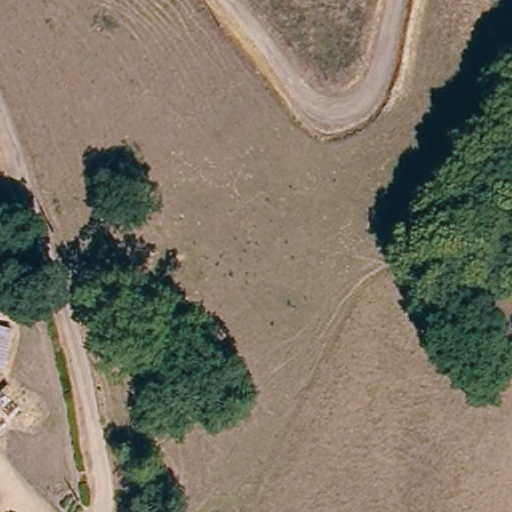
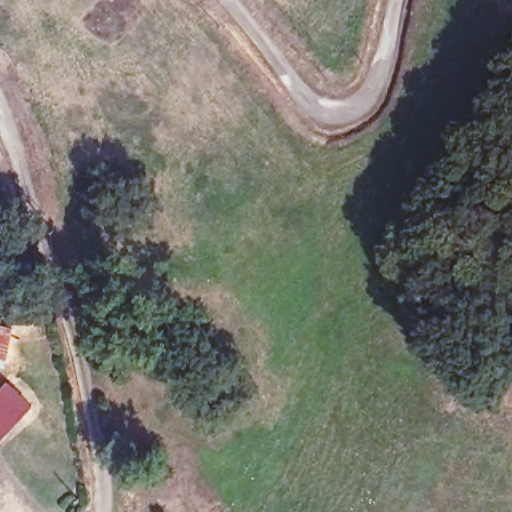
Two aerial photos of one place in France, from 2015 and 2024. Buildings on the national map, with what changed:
new [(15,328),(5,367),(0,366),(0,324),(15,328)]
new [(33,404),(0,441),(0,387),(6,380),(33,404)]

